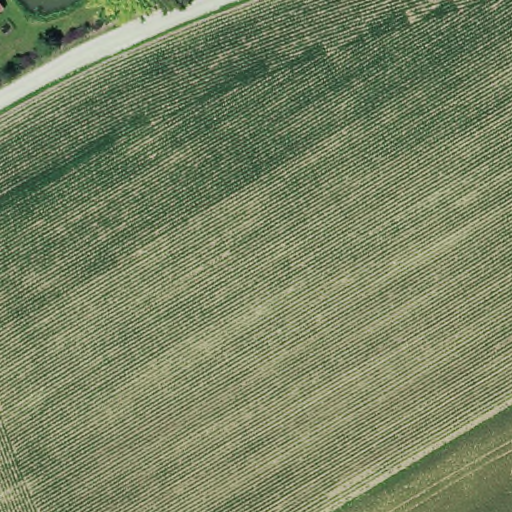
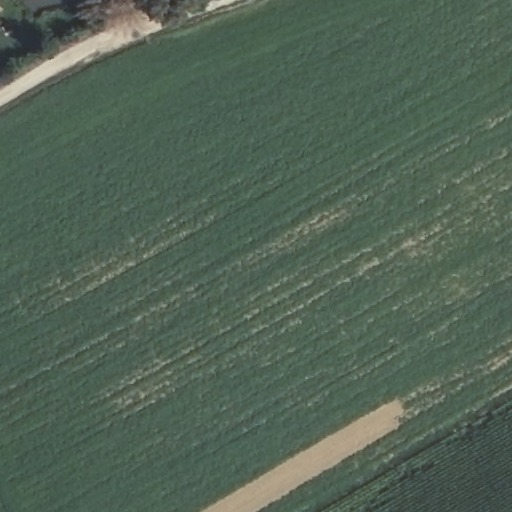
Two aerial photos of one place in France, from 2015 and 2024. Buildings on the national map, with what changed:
unchanged [(0,12),(0,1),(6,8),(0,12)]

